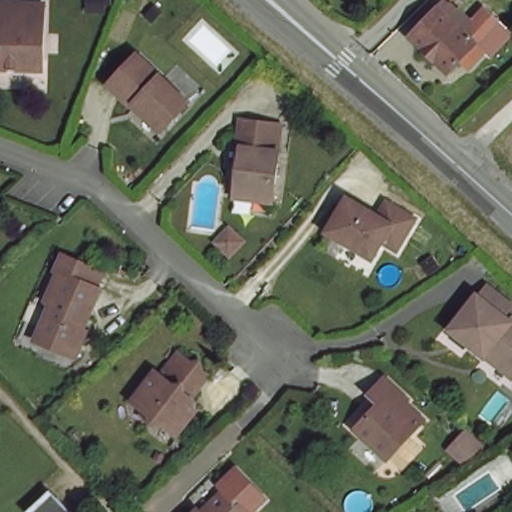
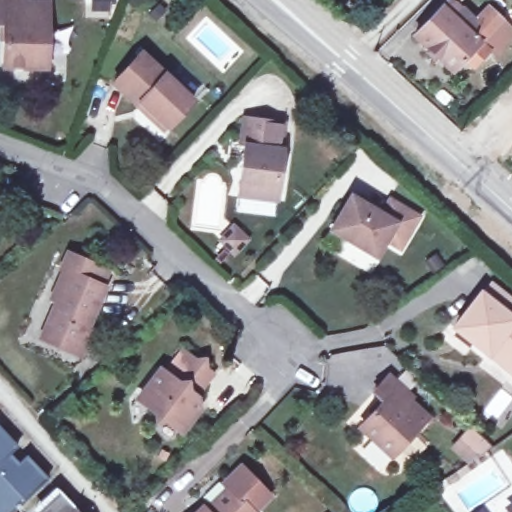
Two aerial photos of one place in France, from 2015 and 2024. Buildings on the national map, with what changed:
unchanged [(45,5),(44,68),(0,68),(2,27),(0,27),(0,0),(20,0),(21,6),(45,5)]
unchanged [(464,0),(468,0),(466,2),(464,0)]
unchanged [(464,64),(452,76),(415,41),(441,13),(469,39),(493,15),(502,25),(480,49),(488,56),(474,71),(464,64)]
unchanged [(138,107),(114,84),(142,52),(194,100),(171,126),(165,132),(138,107)]
unchanged [(282,124),(278,149),(284,150),(275,202),(235,197),(242,146),(236,145),(240,119),(282,124)]
unchanged [(420,215),(401,248),(385,241),(377,256),(332,228),(353,194),(383,212),(391,198),(420,215)]
unchanged [(3,233),(0,232),(0,225),(3,233)]
unchanged [(241,231),(252,242),(238,255),(227,243),(241,231)]
unchanged [(66,348),(41,339),(56,302),(51,301),(70,252),(112,269),(105,284),(109,286),(96,318),(92,318),(88,327),(92,329),(85,347),(82,355),(66,348)]
unchanged [(510,376),(448,330),(476,295),(480,298),(487,288),(511,306),(503,316),(509,321),(512,316),(512,374),(510,376)]
unchanged [(185,431),(171,421),(157,422),(156,409),(141,397),(162,372),(169,377),(187,353),(215,375),(198,394),(202,409),(185,431)]
unchanged [(412,398),(408,403),(426,420),(391,456),(360,429),(382,404),(372,394),(388,376),(412,398)]
unchanged [(461,460),(444,443),(467,420),(482,437),(461,460)]
new [(17,446),(9,453),(18,461),(25,454),(47,478),(13,512),(0,512),(0,429),(17,446)]
unchanged [(203,509),(227,485),(252,512),(191,512),(199,504),(203,509)]
unchanged [(61,497),(74,512),(44,512),(61,497)]
unchanged [(479,507),(483,512),(472,512),(479,507)]
new [(512,509),(512,512),(508,512),(512,509)]

